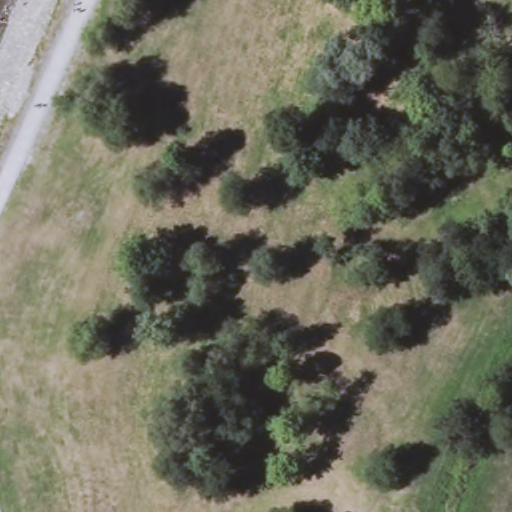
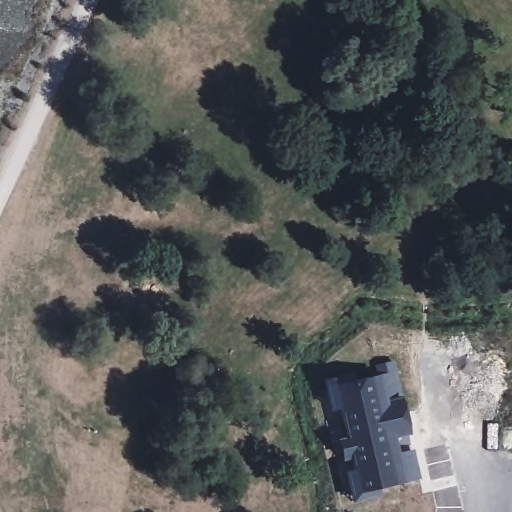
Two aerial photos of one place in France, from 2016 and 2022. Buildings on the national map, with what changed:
new [(352,501),(346,473),(354,472),(351,457),(343,460),(338,441),(347,438),(339,408),(331,410),(324,381),(349,375),(352,383),(379,376),(376,366),(391,362),(408,434),(390,438),(394,456),(413,452),(419,478),(376,488),(378,495),(352,501)]

